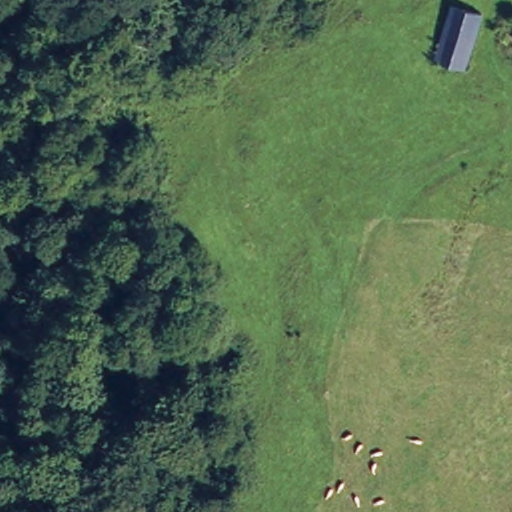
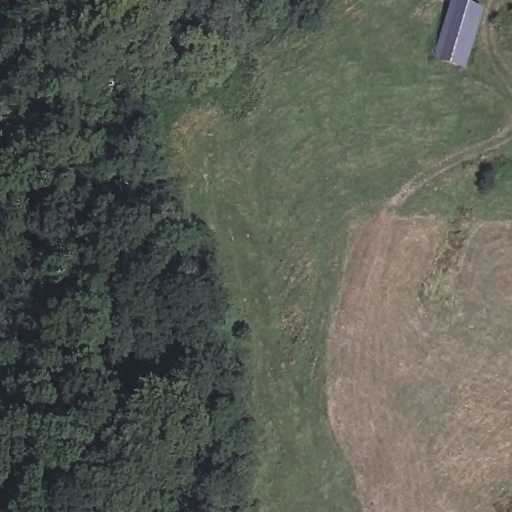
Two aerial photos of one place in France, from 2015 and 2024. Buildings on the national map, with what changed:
unchanged [(452,6),(480,13),(470,53),(466,69),(435,61),(451,10),(452,6)]

